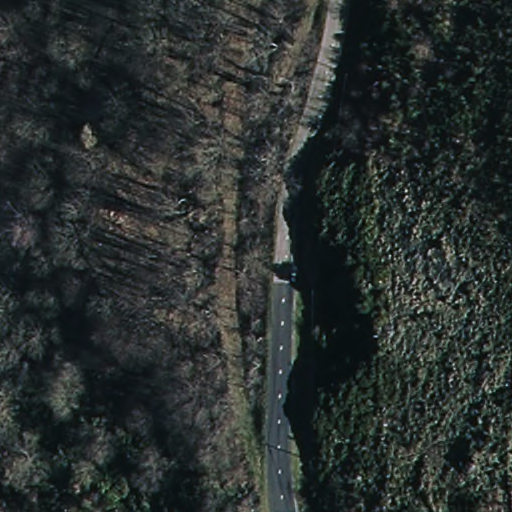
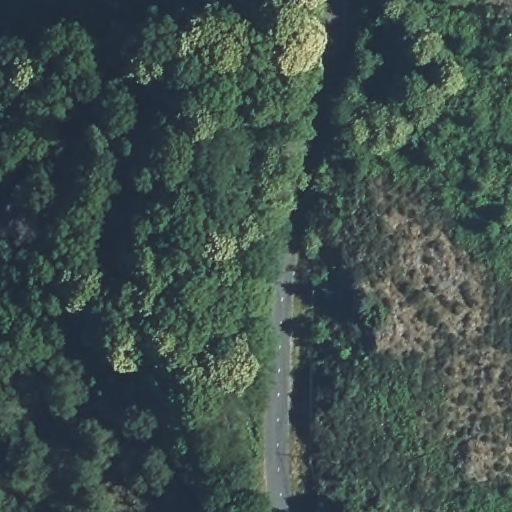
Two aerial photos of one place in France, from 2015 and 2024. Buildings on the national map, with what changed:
[]

